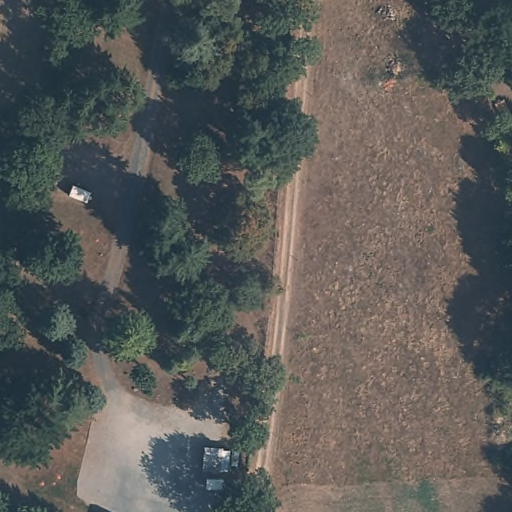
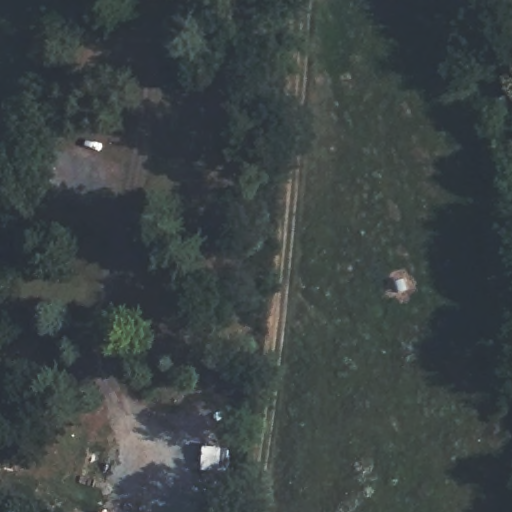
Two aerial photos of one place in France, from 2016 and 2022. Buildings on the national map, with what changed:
unchanged [(222,450),(220,470),(204,469),(206,448),(222,450)]

